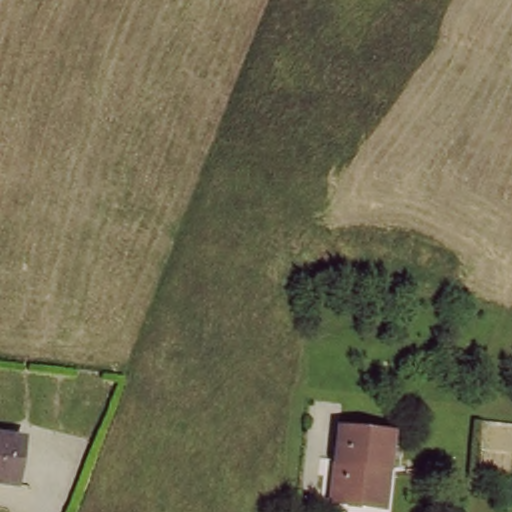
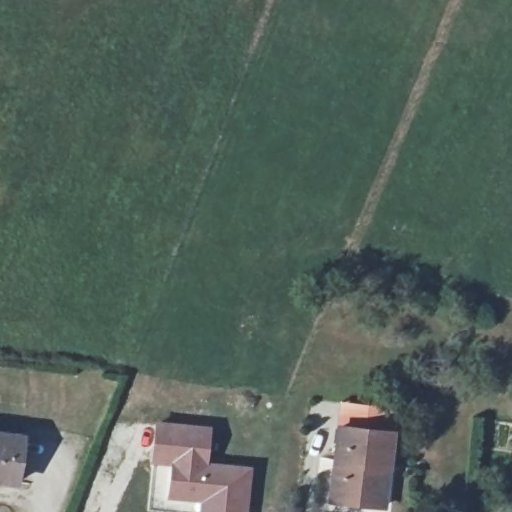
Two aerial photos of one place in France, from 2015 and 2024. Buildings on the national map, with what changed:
new [(340,402),(398,409),(397,431),(341,426),(340,402)]
new [(212,427),(208,462),(253,467),(248,512),(200,512),(201,503),(167,500),(172,465),(152,463),(155,421),(212,427)]
unchanged [(367,505),(335,501),(341,426),(397,431),(391,493),(390,508),(367,505)]
unchanged [(20,486),(0,484),(0,436),(25,438),(20,486)]

